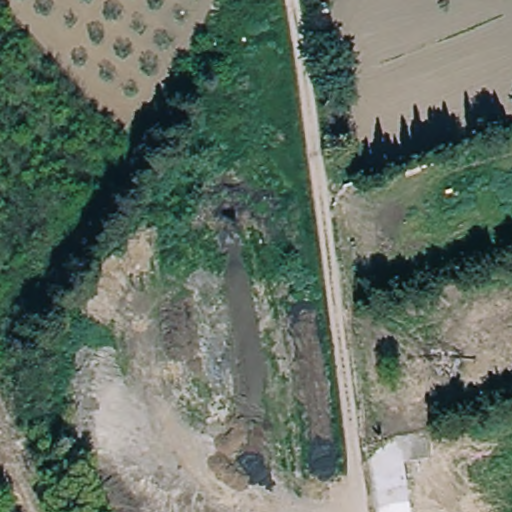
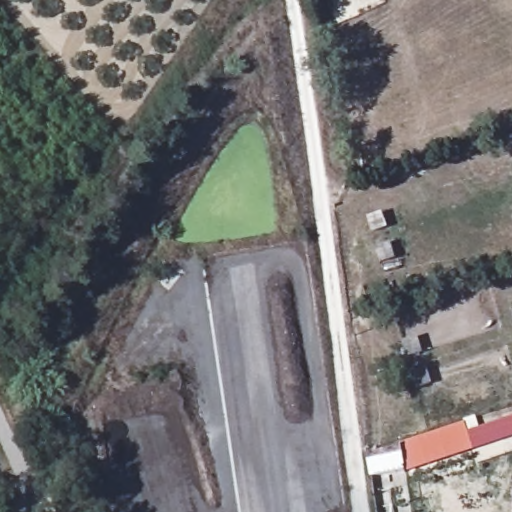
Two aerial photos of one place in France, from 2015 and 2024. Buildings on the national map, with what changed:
new [(398,444),(464,422),(466,430),(512,416),(512,437),(404,472),(398,444)]

